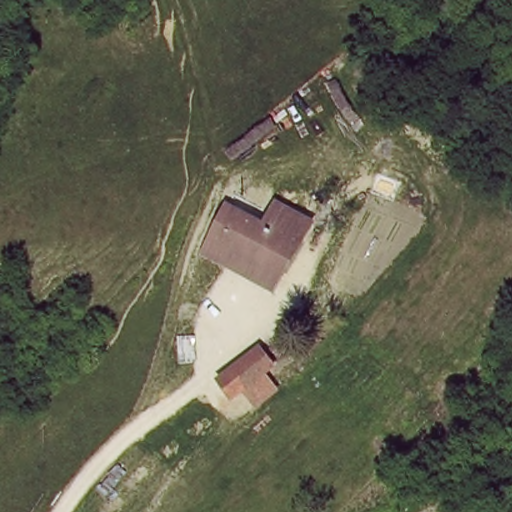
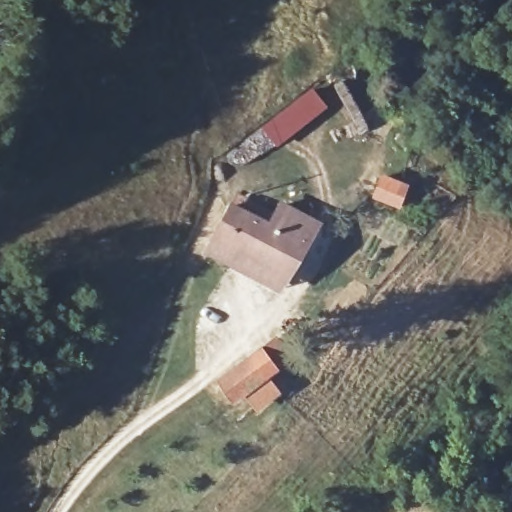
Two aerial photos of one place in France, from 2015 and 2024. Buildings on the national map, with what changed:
new [(275,150),(259,130),(312,90),(327,110),(275,150)]
unchanged [(257,224),(266,203),(316,226),(306,247),(257,224)]
unchanged [(232,275),(206,262),(219,234),(228,216),(229,211),(257,224),(306,247),(289,282),(282,298),(232,275)]
unchanged [(275,373),(269,378),(254,391),(242,399),(236,403),(231,407),(215,385),(257,352),(275,373)]

